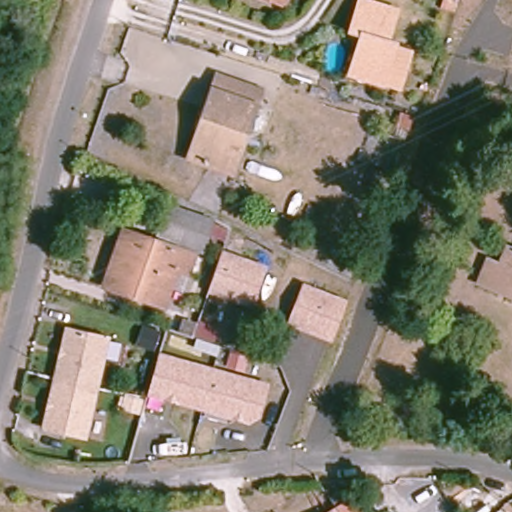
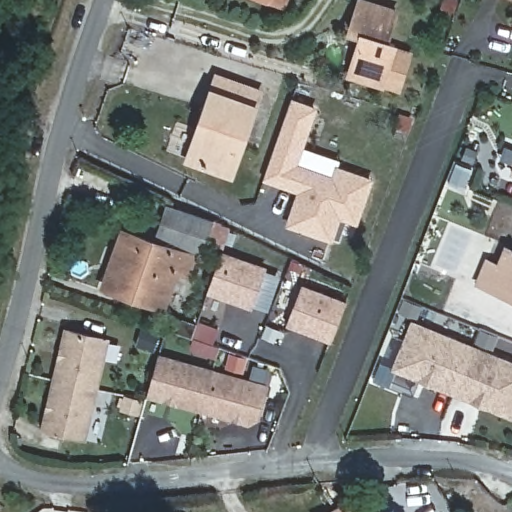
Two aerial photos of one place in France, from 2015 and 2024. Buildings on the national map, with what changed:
unchanged [(266,0),(282,0),(280,6),(266,0)]
unchanged [(349,74),(358,45),(365,47),(368,37),(350,31),(359,0),(361,0),(396,11),(386,42),(394,45),(394,46),(397,45),(409,49),(397,90),(382,85),(349,74)]
unchanged [(442,8),(444,0),(460,0),(456,13),(442,8)]
unchanged [(198,129),(212,90),(217,76),(260,92),(255,106),(230,175),(196,161),(188,158),(198,129)]
new [(303,189),(267,177),(294,100),(317,108),(297,165),(336,178),(340,167),(372,179),(359,218),(342,212),(334,236),(301,225),(292,222),(297,207),(303,189)]
new [(509,173),(512,165),(512,174),(509,173)]
unchanged [(208,249),(161,233),(171,205),(217,221),(208,249)]
unchanged [(194,274),(181,271),(168,307),(108,287),(126,232),(200,258),(194,274)]
unchanged [(251,310),(206,294),(221,250),(266,266),(251,310)]
unchanged [(477,285),(486,263),(500,268),(507,252),(512,254),(512,299),(510,298),(491,290),(477,285)]
unchanged [(331,342),(287,325),(302,282),(347,300),(331,342)]
new [(411,318),(512,360),(512,417),(392,369),(411,318)]
unchanged [(41,430),(64,326),(110,338),(87,440),(41,430)]
unchanged [(260,417),(246,425),(146,396),(158,352),(269,383),(260,417)]
demolished [(496,510),(494,512),(457,512),(446,503),(462,483),(496,510)]
unchanged [(335,511),(326,497),(337,491),(345,504),(359,496),(368,512),(332,512),(335,511)]

